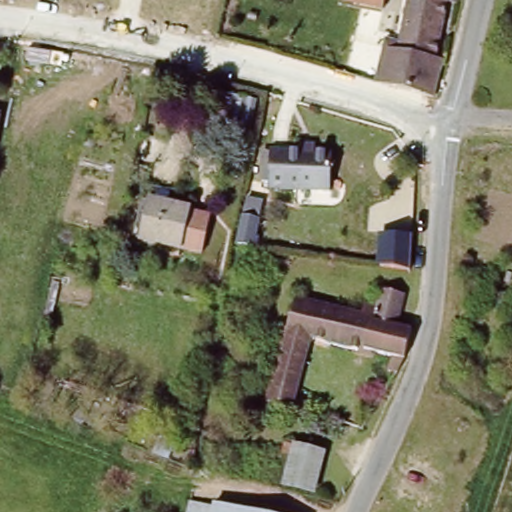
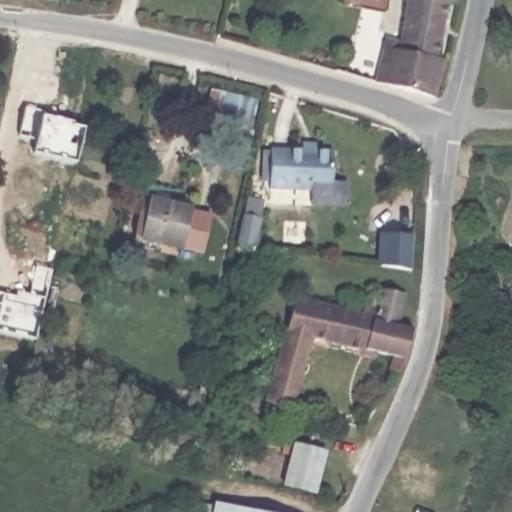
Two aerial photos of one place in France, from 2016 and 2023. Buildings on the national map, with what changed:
unchanged [(387,7),(358,0),(389,0),(387,7)]
unchanged [(370,77),(375,57),(383,57),(388,32),(402,35),(411,0),(461,0),(460,5),(453,2),(436,53),(443,55),(432,94),(370,77)]
unchanged [(274,187),(274,150),(335,152),(335,190),(274,187)]
unchanged [(145,242),(153,198),(212,207),(205,251),(145,242)]
unchanged [(407,359),(398,377),(390,373),(395,357),(312,339),(297,395),(304,398),(304,403),(308,406),(306,412),(266,402),(296,303),(366,316),(368,304),(381,306),(382,291),(407,295),(401,328),(413,331),(407,359)]
unchanged [(319,490),(291,483),(297,440),(328,446),(319,490)]
unchanged [(174,512),(177,494),(253,511),(253,512),(174,512)]
unchanged [(253,512),(253,511),(258,512),(253,512)]

